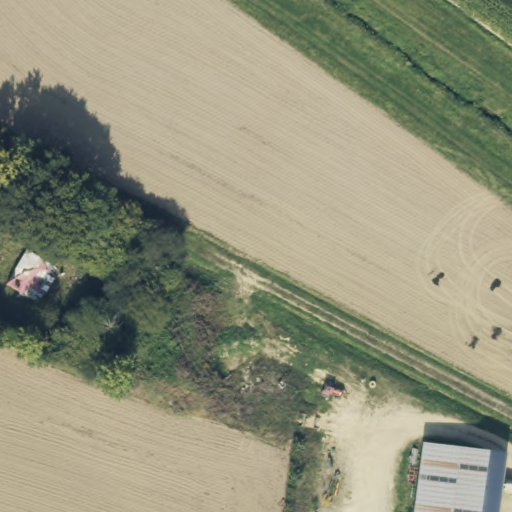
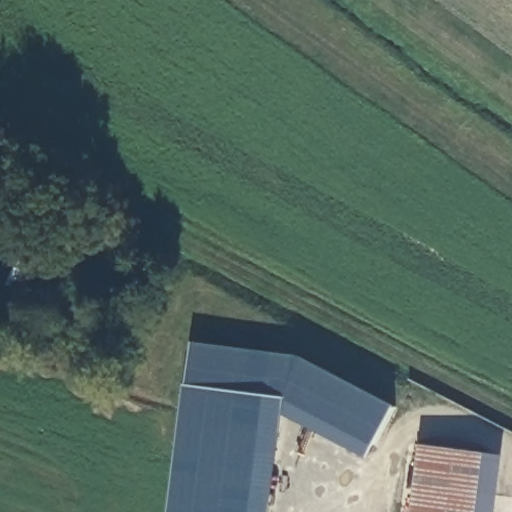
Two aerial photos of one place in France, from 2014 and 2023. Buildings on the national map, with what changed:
new [(395,406),(370,457),(286,413),(273,512),(171,512),(188,384),(190,385),(195,342),(300,356),(395,406)]
unchanged [(414,512),(423,445),(487,452),(480,512),(414,512)]
new [(480,512),(487,452),(506,456),(499,512),(480,512)]

